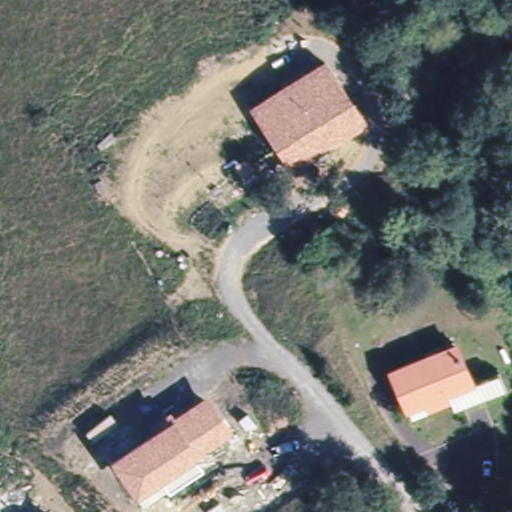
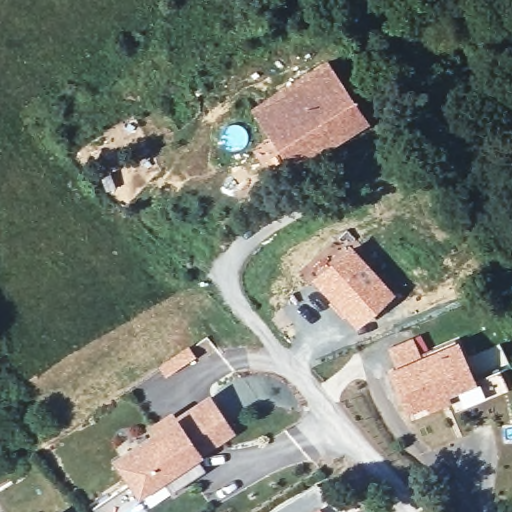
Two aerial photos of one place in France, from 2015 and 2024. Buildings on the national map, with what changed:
unchanged [(366,121),(291,171),(250,105),(326,57),(366,121)]
new [(395,293),(355,329),(310,277),(351,243),(395,293)]
unchanged [(469,382),(496,372),(507,401),(480,412),(472,393),(404,416),(387,368),(451,339),(469,382)]
unchanged [(233,431),(204,452),(206,454),(198,461),(205,470),(170,494),(164,484),(140,500),(112,460),(152,432),(147,424),(171,407),(175,412),(206,392),(233,431)]
unchanged [(54,512),(51,512),(53,511),(54,512)]

